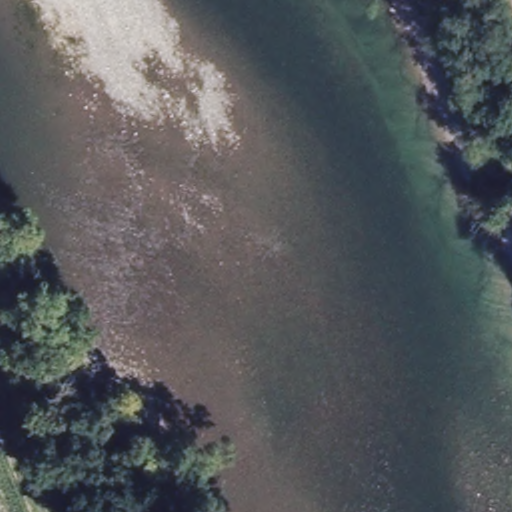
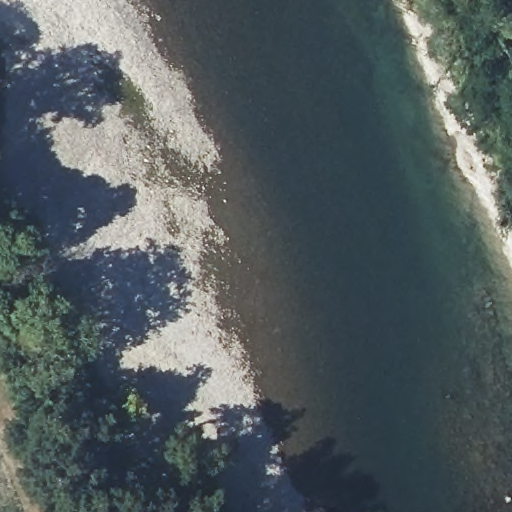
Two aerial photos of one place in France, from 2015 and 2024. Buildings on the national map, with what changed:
[]

